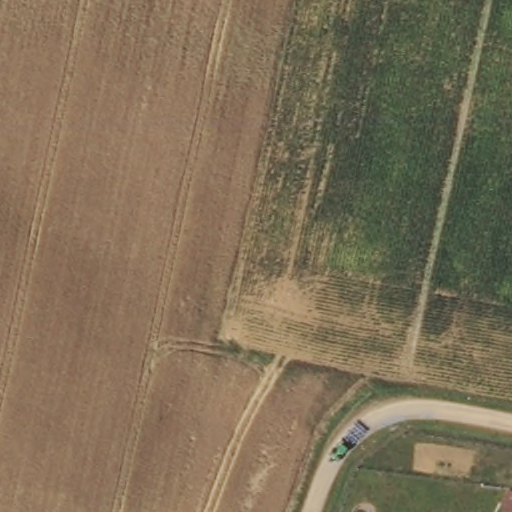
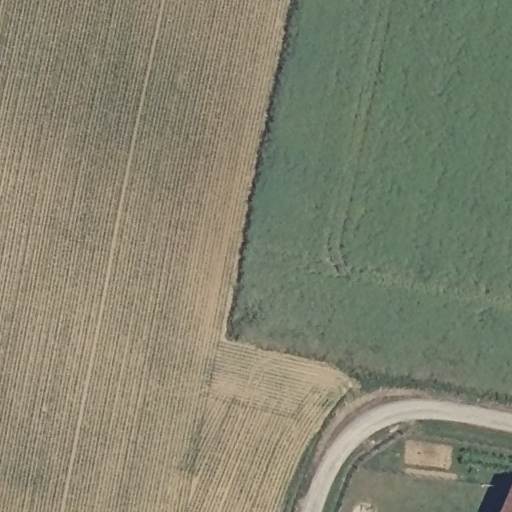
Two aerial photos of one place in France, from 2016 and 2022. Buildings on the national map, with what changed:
unchanged [(512,497),(512,512),(506,512),(512,497)]

